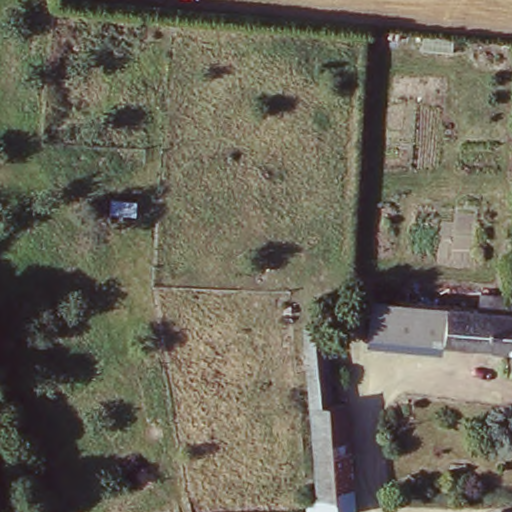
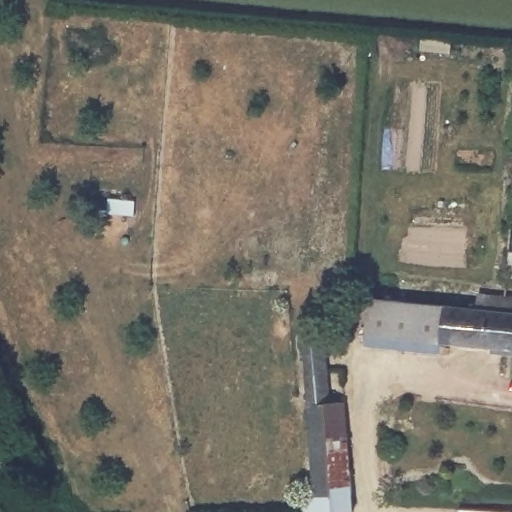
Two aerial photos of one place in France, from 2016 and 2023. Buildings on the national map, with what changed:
unchanged [(512,253),(512,278),(504,277),(506,253),(512,253)]
unchanged [(474,310),(476,294),(502,296),(512,298),(512,352),(437,344),(441,306),(474,310)]
unchanged [(363,336),(367,298),(441,306),(437,344),(363,336)]
unchanged [(329,401),(348,400),(353,505),(304,507),(302,488),(314,487),(304,327),(323,325),(329,401)]

